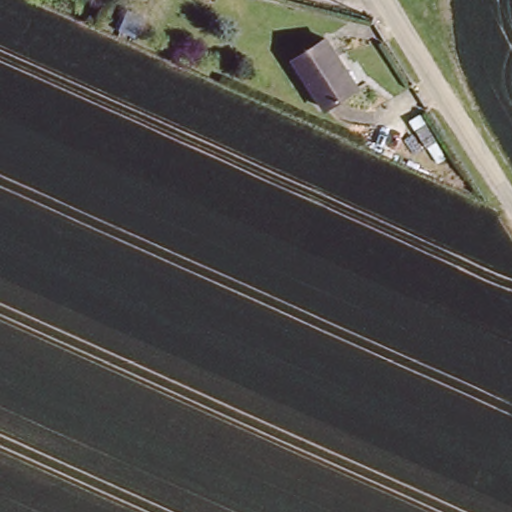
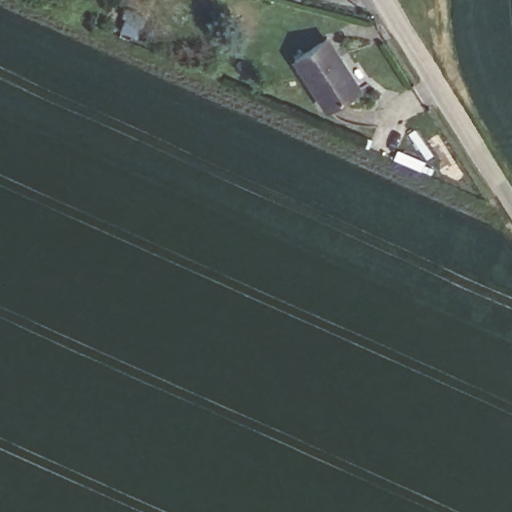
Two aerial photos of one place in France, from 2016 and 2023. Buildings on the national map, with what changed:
unchanged [(328,32),(361,85),(331,104),(298,51),(328,32)]

